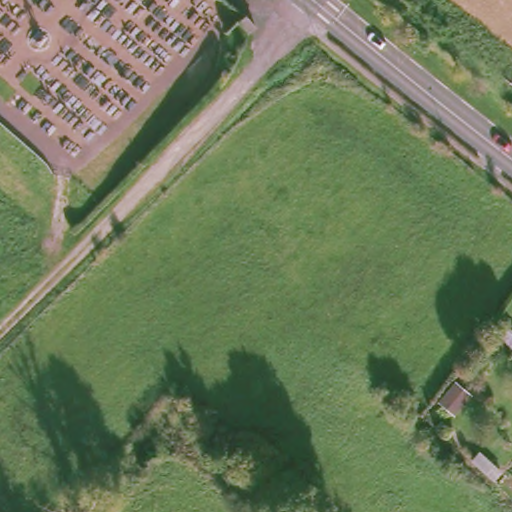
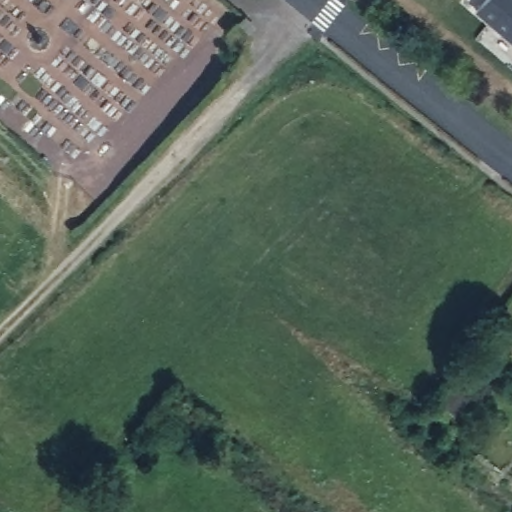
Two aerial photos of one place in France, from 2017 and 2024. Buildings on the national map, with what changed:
new [(512,51),(470,18),(486,0),(512,0),(512,51)]
demolished [(512,322),(512,350),(511,350),(512,322)]

